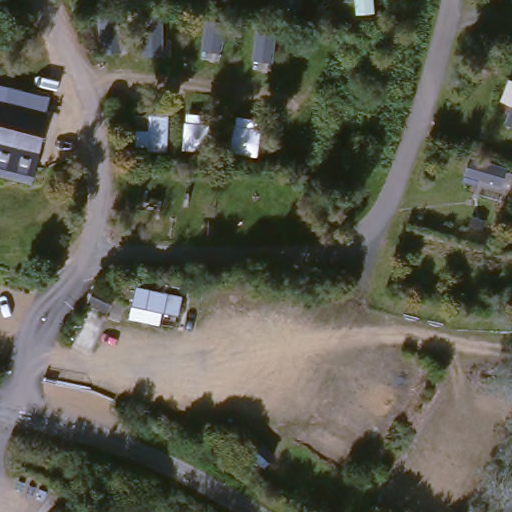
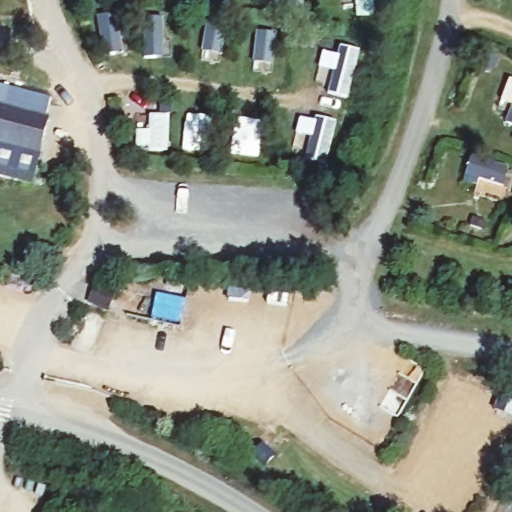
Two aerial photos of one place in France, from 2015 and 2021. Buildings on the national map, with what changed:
unchanged [(60,94),(53,114),(56,116),(44,149),(45,150),(35,180),(0,169),(0,74),(20,81),(60,94)]
unchanged [(90,281),(106,290),(96,307),(79,298),(90,281)]

